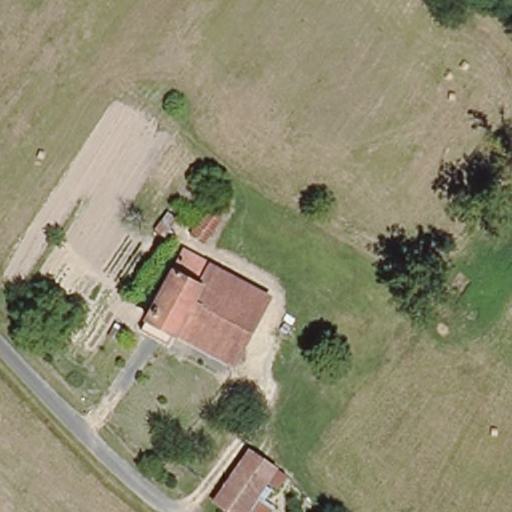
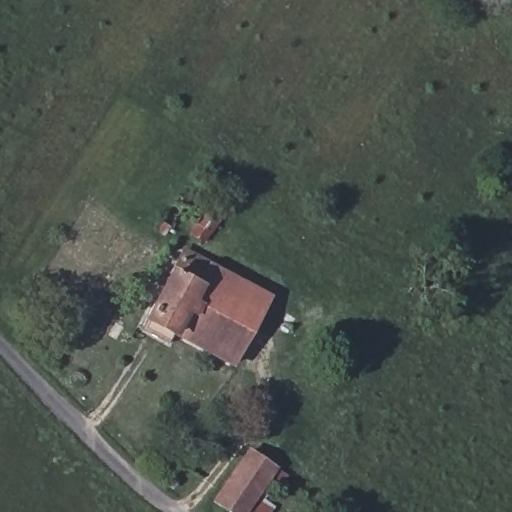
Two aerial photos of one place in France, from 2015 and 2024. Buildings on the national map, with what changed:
unchanged [(181,252),(268,297),(237,364),(150,321),(181,252)]
unchanged [(268,463),(285,473),(268,502),(262,512),(235,512),(211,496),(240,446),(268,463)]

